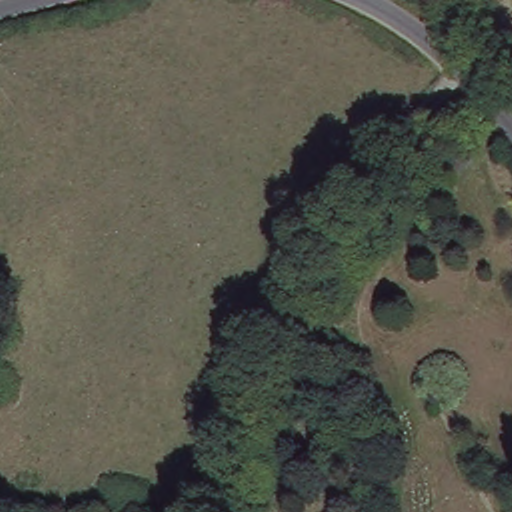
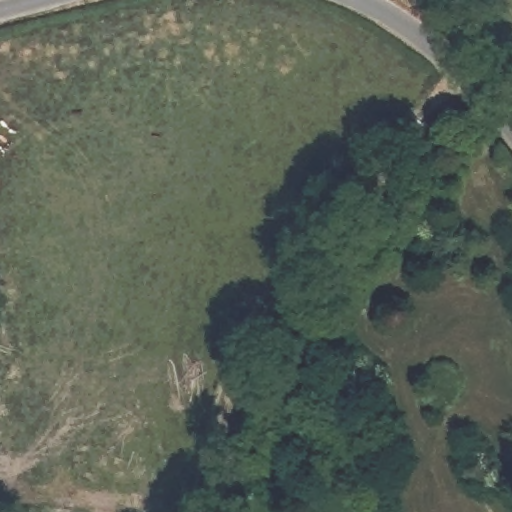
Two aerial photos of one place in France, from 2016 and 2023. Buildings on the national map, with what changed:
[]

